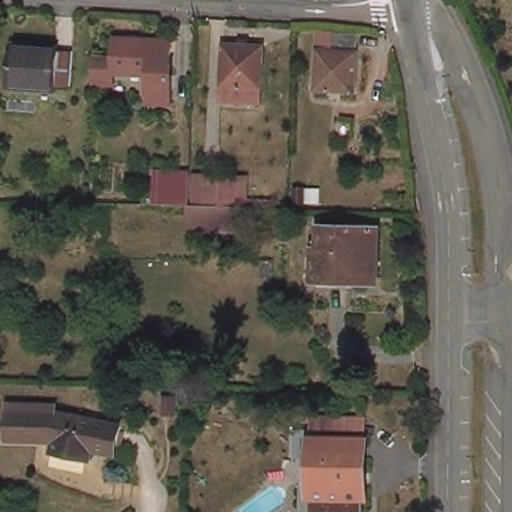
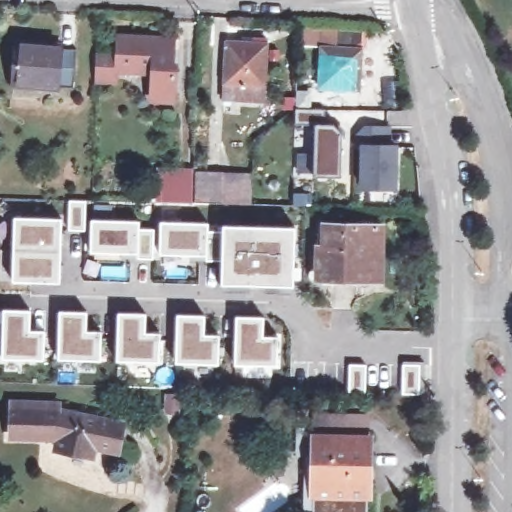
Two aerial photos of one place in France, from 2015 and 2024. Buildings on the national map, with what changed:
unchanged [(158,74),(121,72),(121,80),(103,80),(105,54),(123,55),(125,38),(179,39),(177,64),(181,64),(179,101),(157,101),(158,74)]
unchanged [(74,88),(57,86),(57,89),(11,85),(16,43),(62,46),(62,48),(77,49),(74,88)]
unchanged [(325,44),(361,46),(357,104),(318,103),(320,60),(325,60),(325,44)]
unchanged [(271,49),(267,107),(228,105),(232,48),(271,49)]
new [(327,111),(325,127),(333,127),(341,135),(340,174),(316,176),(316,124),(296,122),(296,109),(327,111)]
new [(354,135),(364,125),(388,126),(387,147),(395,147),(393,194),(361,193),(362,148),(353,148),(354,135)]
unchanged [(155,202),(155,172),(188,172),(187,203),(155,202)]
unchanged [(192,174),(245,175),(243,205),(201,204),(191,203),(192,174)]
new [(70,200),(86,201),(85,230),(69,230),(70,200)]
demolished [(191,203),(201,204),(243,205),(245,205),(244,229),(187,227),(188,203),(191,203)]
new [(15,218),(61,219),(60,252),(14,249),(15,218)]
new [(139,221),(138,228),(153,229),(153,258),(138,258),(138,254),(91,252),(92,219),(139,221)]
new [(208,223),(207,232),(223,232),(223,226),(293,228),(290,286),(221,284),(222,262),(206,262),(206,254),(160,254),(160,222),(208,223)]
unchanged [(383,285),(361,285),(361,282),(321,280),(321,252),(328,253),(329,230),(385,233),(383,285)]
new [(13,282),(14,249),(60,252),(60,283),(13,282)]
new [(31,310),(30,330),(45,332),(45,359),(2,358),(3,310),(31,310)]
new [(86,312),(86,332),(101,333),(100,361),(58,359),(60,312),(86,312)]
new [(145,314),(145,334),(160,334),(160,363),(117,361),(118,313),(145,314)]
new [(205,316),(204,336),(219,337),(218,364),(176,363),(177,315),(205,316)]
new [(263,318),(263,338),(278,338),(277,366),(235,365),(236,317),(263,318)]
new [(420,362),(419,394),(402,394),(403,362),(420,362)]
new [(348,364),(365,364),(363,391),(348,390),(348,364)]
unchanged [(180,393),(179,410),(167,410),(167,393),(180,393)]
unchanged [(67,400),(67,405),(133,419),(127,447),(105,442),(102,452),(65,444),(67,434),(64,434),(65,429),(21,426),(22,398),(67,400)]
unchanged [(372,512),(353,512),(353,499),(319,499),(321,418),(342,418),(374,419),(373,442),(372,499),(372,512)]

